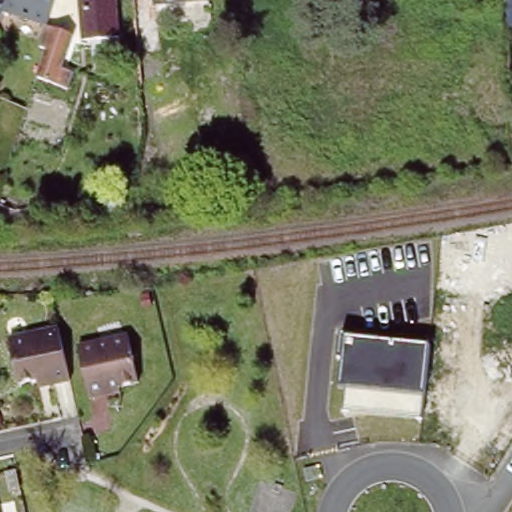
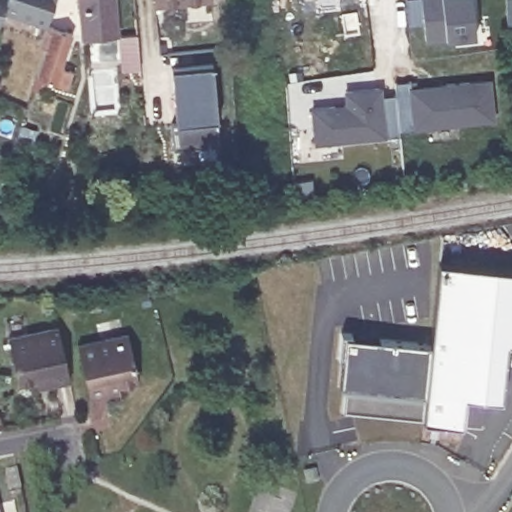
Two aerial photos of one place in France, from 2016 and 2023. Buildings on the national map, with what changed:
unchanged [(0,28),(0,0),(55,0),(41,43),(0,28)]
unchanged [(117,0),(120,32),(83,34),(80,0),(117,0)]
unchanged [(153,4),(153,0),(195,0),(183,1),(153,4)]
new [(425,41),(424,24),(410,25),(407,0),(473,0),(477,36),(445,39),(425,41)]
unchanged [(75,31),(65,65),(70,68),(65,84),(30,71),(38,48),(55,54),(64,28),(75,31)]
new [(181,123),(177,68),(217,65),(224,145),(178,149),(176,124),(181,123)]
new [(413,129),(400,130),(400,136),(315,144),(311,106),(345,103),(345,90),(382,86),(383,96),(396,95),(394,84),(415,81),(415,85),(490,78),(495,121),(413,129)]
new [(427,422),(433,348),(443,264),(512,268),(512,342),(508,342),(505,399),(467,396),(465,424),(427,422)]
unchanged [(35,376),(17,379),(7,335),(57,324),(68,378),(47,383),(37,385),(35,376)]
unchanged [(103,395),(86,399),(75,348),(125,337),(135,382),(115,387),(116,393),(103,395)]
unchanged [(349,414),(351,393),(345,391),(350,339),(433,348),(427,422),(349,414)]

